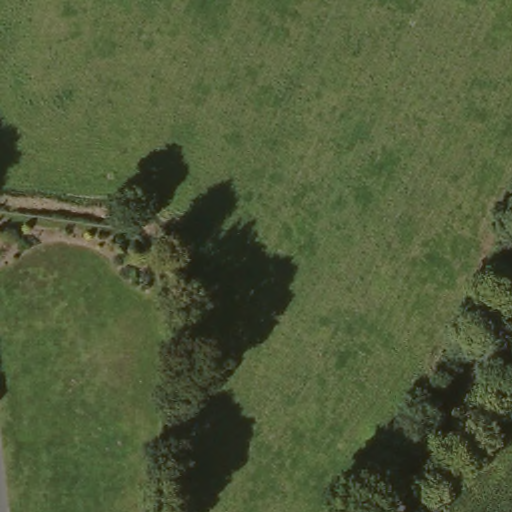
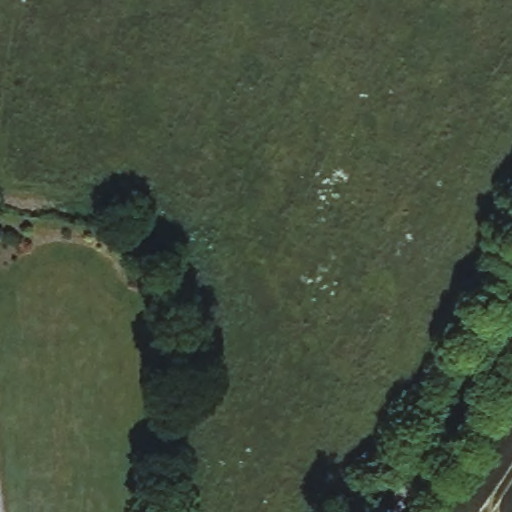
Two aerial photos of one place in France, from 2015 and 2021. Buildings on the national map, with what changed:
[]

